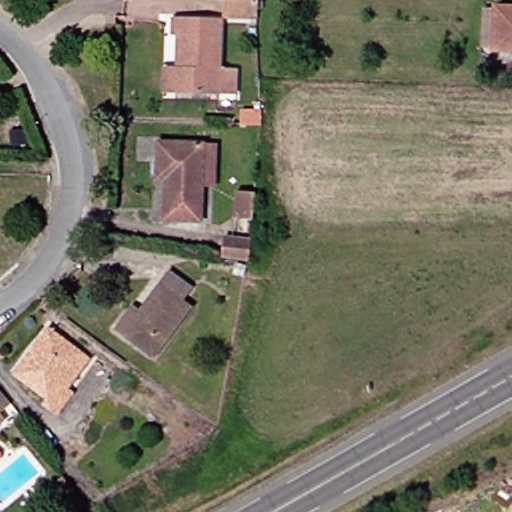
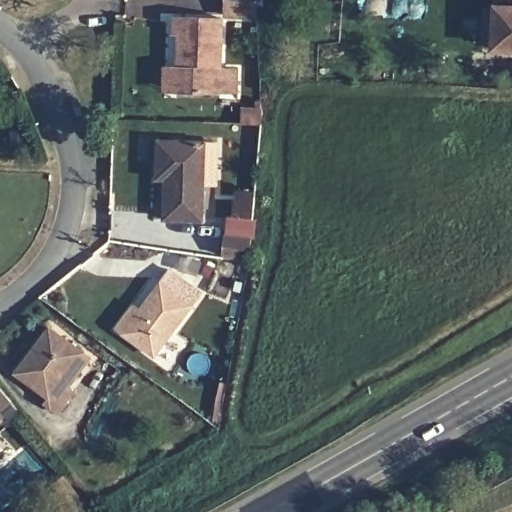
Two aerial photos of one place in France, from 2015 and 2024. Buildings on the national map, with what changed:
unchanged [(258,0),(259,14),(227,12),(227,0),(258,0)]
unchanged [(512,10),(512,54),(500,53),(502,10),(512,10)]
unchanged [(237,94),(222,94),(179,91),(164,91),(164,65),(179,65),(180,31),(173,31),(174,16),(224,18),(223,71),(237,72),(237,94)]
unchanged [(210,141),(208,220),(172,219),(173,179),(163,179),(164,140),(210,141)]
unchanged [(244,221),(245,196),(264,196),(262,222),(244,221)]
unchanged [(228,258),(231,241),(258,245),(254,263),(228,258)]
unchanged [(134,305),(142,311),(169,271),(191,285),(182,298),(191,305),(156,355),(125,335),(117,330),(134,305)]
unchanged [(69,390),(73,392),(60,411),(49,404),(53,399),(17,373),(49,329),(83,353),(90,358),(69,390)]
unchanged [(0,409),(0,387),(11,400),(0,409)]
unchanged [(0,411),(5,416),(0,421),(0,411)]

